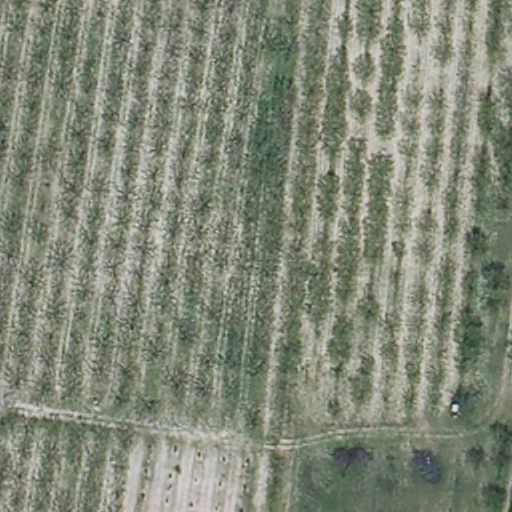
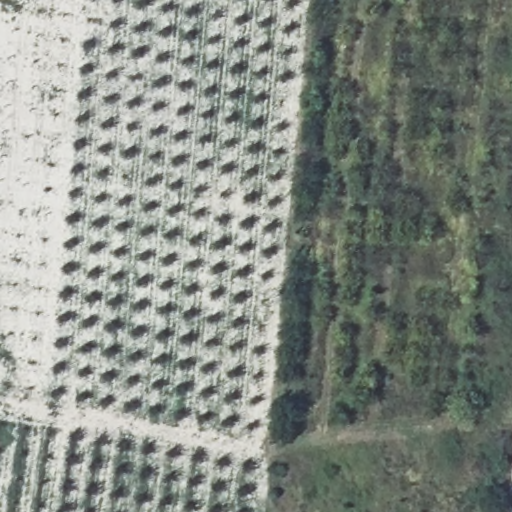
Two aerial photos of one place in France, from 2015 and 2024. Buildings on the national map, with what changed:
[]

